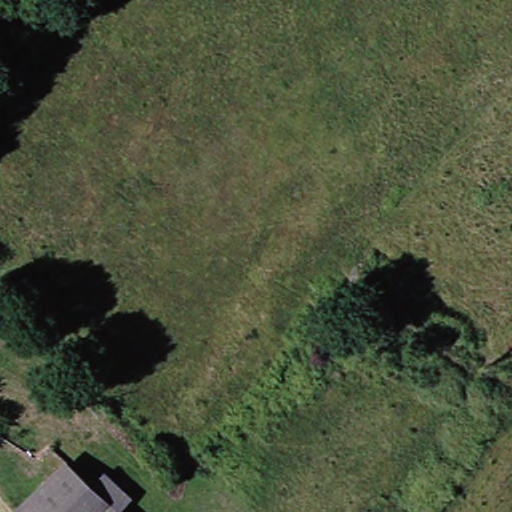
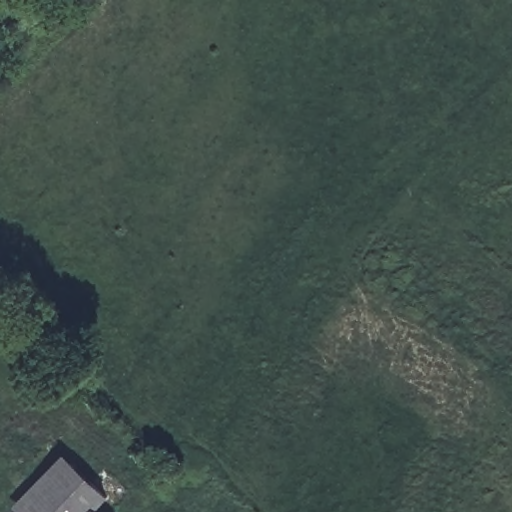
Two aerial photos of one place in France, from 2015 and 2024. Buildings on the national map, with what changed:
unchanged [(21,501),(67,451),(126,503),(135,512),(31,512),(21,501)]

